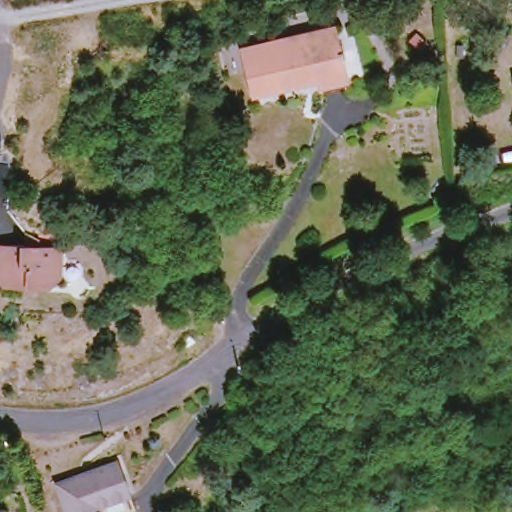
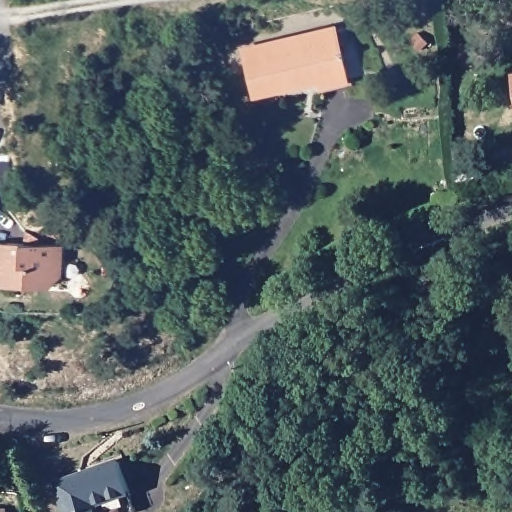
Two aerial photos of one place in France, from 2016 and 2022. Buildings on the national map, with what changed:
unchanged [(248,49),(340,30),(351,84),(325,88),(323,80),(258,94),(248,49)]
unchanged [(63,280),(59,287),(32,285),(31,291),(11,290),(1,281),(1,249),(31,247),(30,232),(44,237),(43,247),(62,246),(63,280)]
unchanged [(118,460),(130,492),(136,512),(66,512),(56,482),(118,460)]
unchanged [(8,512),(0,512),(7,511),(8,512)]

